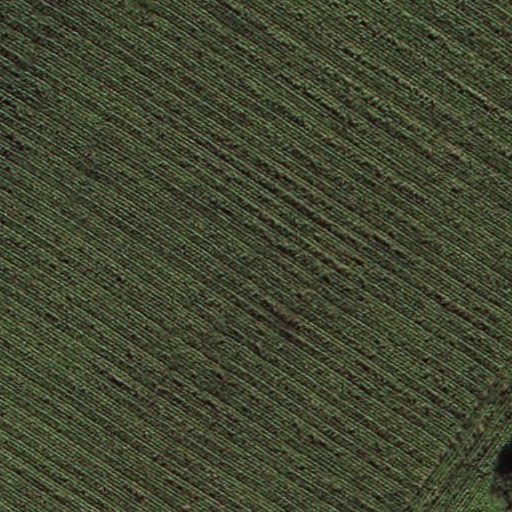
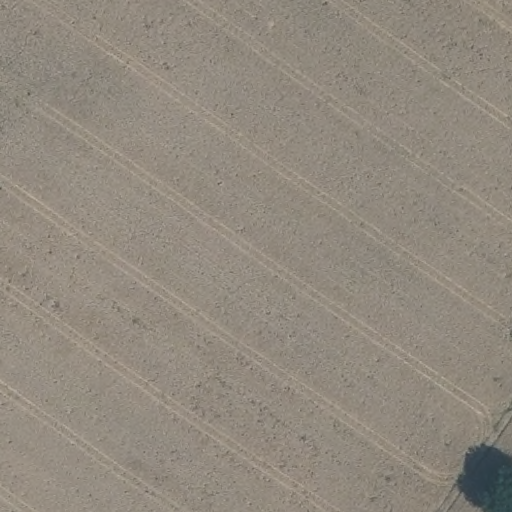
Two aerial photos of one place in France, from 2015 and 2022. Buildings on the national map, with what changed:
[]

